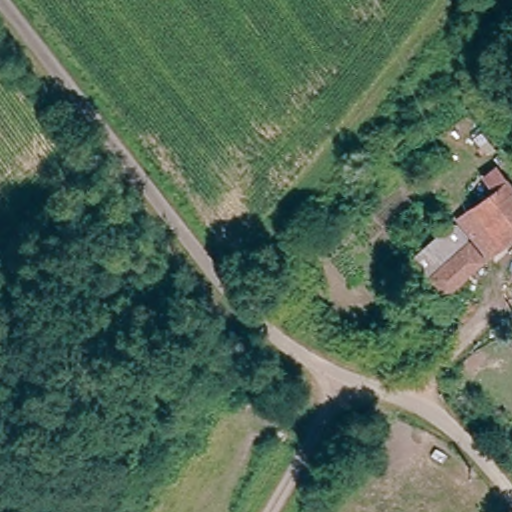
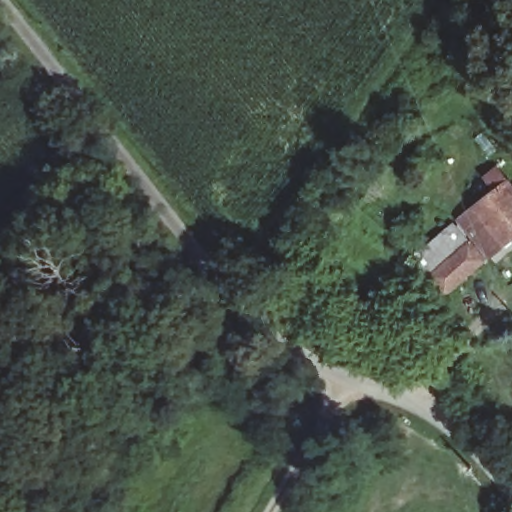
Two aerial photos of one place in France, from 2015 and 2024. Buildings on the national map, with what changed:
unchanged [(494,193),(483,179),(496,167),(512,186),(512,238),(490,256),(460,222),(494,193)]
unchanged [(453,227),(482,262),(445,293),(416,258),(453,227)]

